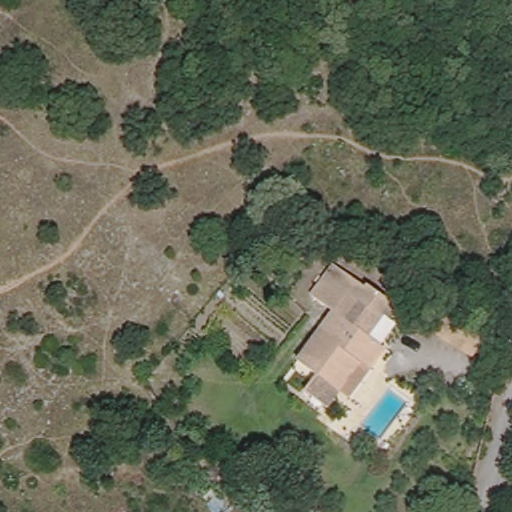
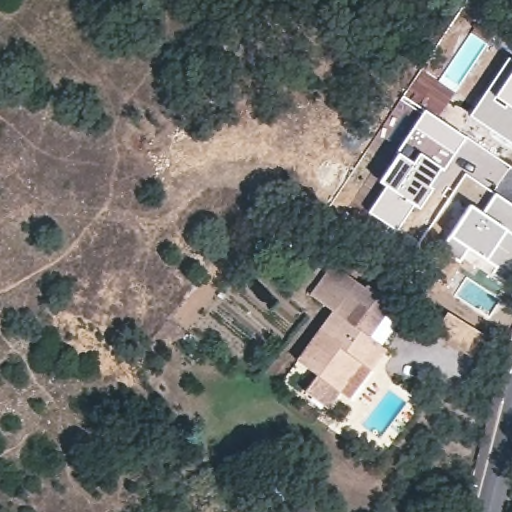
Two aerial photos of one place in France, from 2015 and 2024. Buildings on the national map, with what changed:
new [(512,58),(512,147),(467,116),(508,55),(512,58)]
new [(383,186),(376,182),(424,107),(469,137),(420,211),(416,207),(399,232),(366,212),(383,186)]
new [(466,172),(492,190),(479,206),(470,201),(455,191),(466,172)]
new [(507,286),(463,256),(458,262),(440,248),(448,235),(469,205),(482,213),(495,192),(512,204),(512,278),(507,286)]
unchanged [(297,366),(334,316),(311,300),(333,269),(364,291),(366,287),(397,311),(385,327),(370,317),(358,333),(384,352),(370,372),(349,402),(338,394),(297,366)]
new [(434,335),(447,312),(486,336),(473,358),(434,335)]

